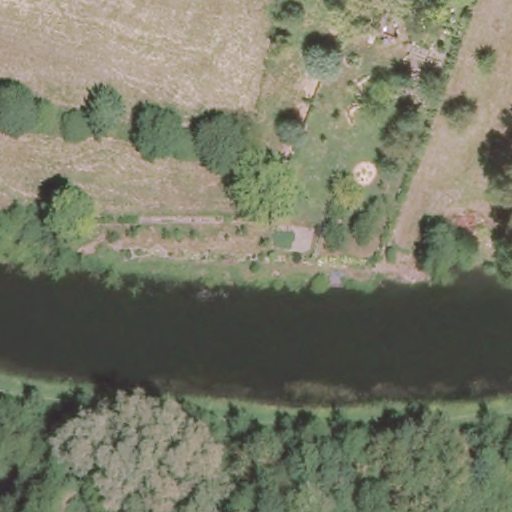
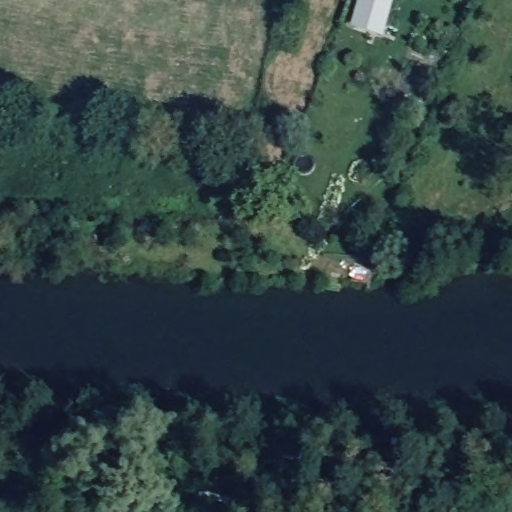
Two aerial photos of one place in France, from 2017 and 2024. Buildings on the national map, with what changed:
new [(381,39),(350,30),(359,0),(392,0),(381,39)]
demolished [(367,0),(383,0),(399,5),(386,47),(354,36),(367,0)]

